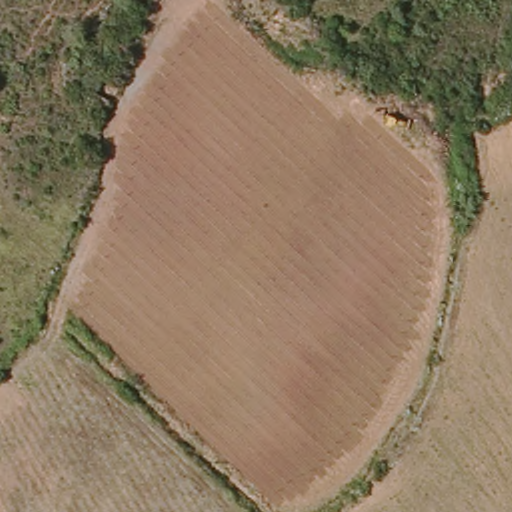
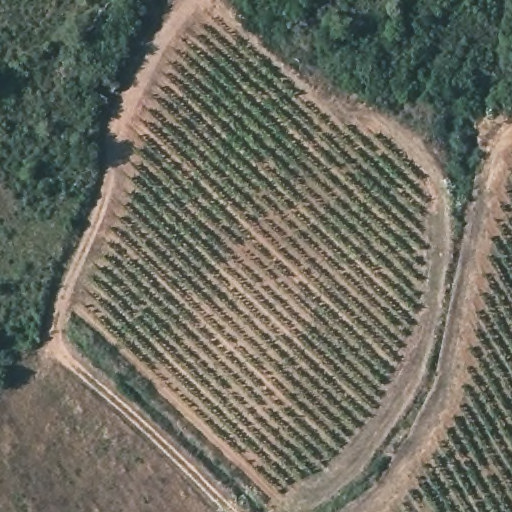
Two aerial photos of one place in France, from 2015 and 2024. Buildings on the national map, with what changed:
unchanged [(94,92),(105,76),(118,87),(107,104),(94,92)]

